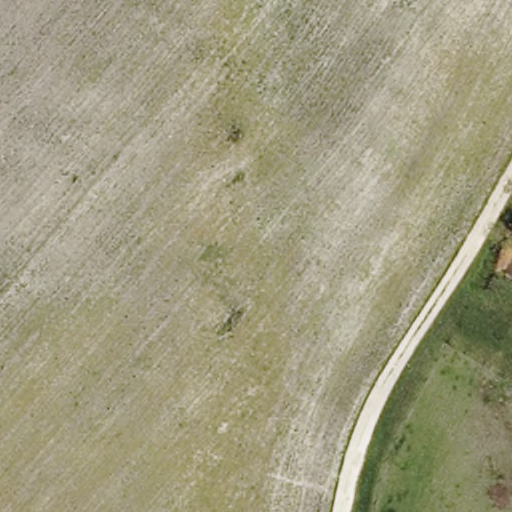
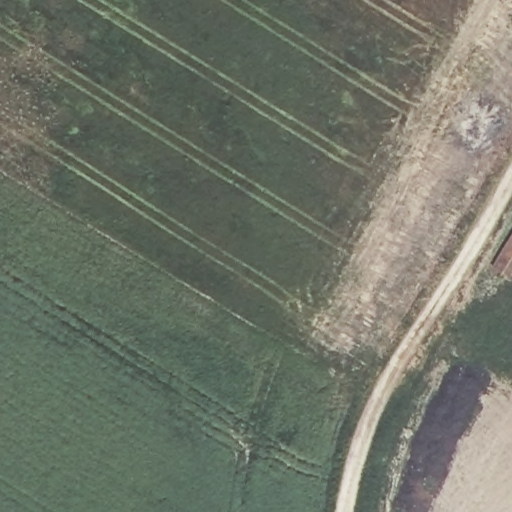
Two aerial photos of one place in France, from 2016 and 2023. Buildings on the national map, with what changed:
unchanged [(512,279),(511,281),(490,271),(512,227),(512,279)]

